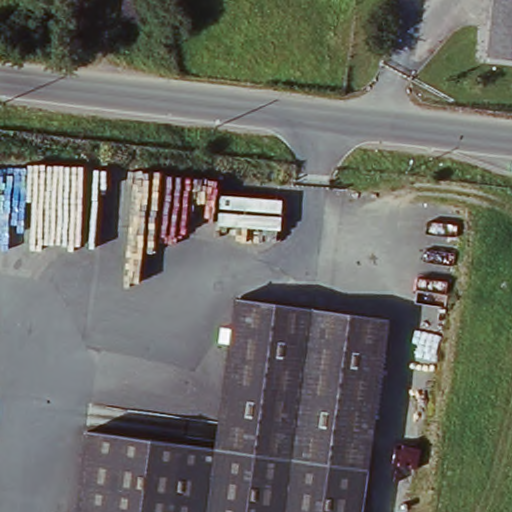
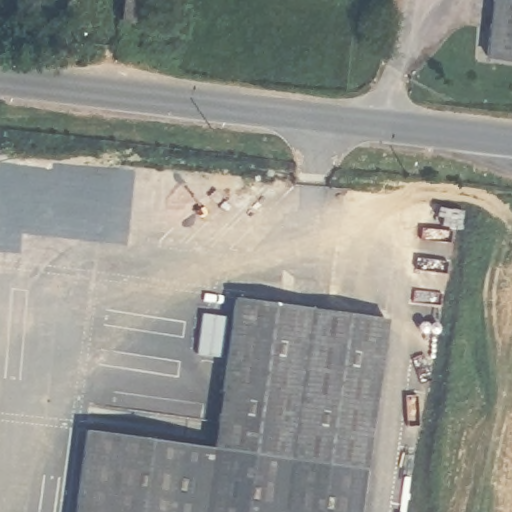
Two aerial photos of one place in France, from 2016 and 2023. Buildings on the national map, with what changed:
unchanged [(120,0),(155,0),(151,27),(117,22),(120,0)]
unchanged [(484,59),(491,0),(512,0),(512,62),(484,59)]
unchanged [(61,53),(75,55),(74,67),(59,65),(61,53)]
unchanged [(213,453),(238,303),(386,327),(359,512),(95,512),(106,437),(213,453)]

